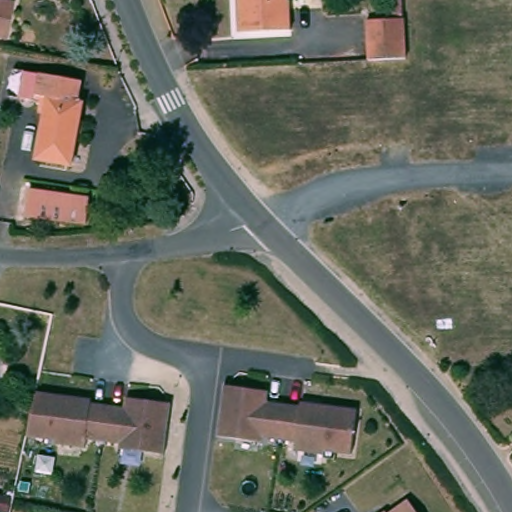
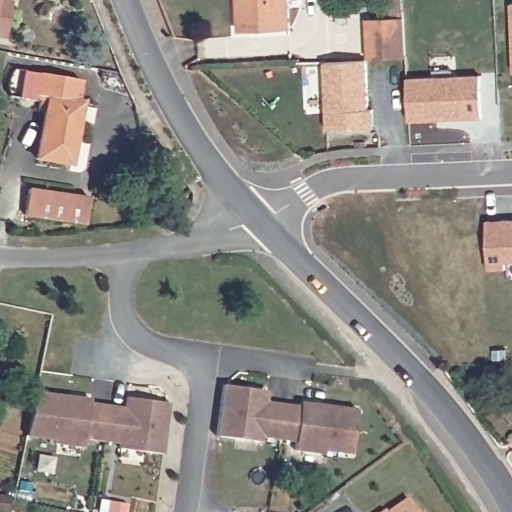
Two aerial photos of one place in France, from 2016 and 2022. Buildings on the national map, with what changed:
unchanged [(238,31),(238,0),(289,0),(290,29),(238,31)]
unchanged [(13,6),(11,15),(7,39),(0,37),(0,3),(13,6)]
new [(512,4),(512,61),(509,4),(512,4)]
unchanged [(401,17),(403,59),(366,61),(364,19),(401,17)]
new [(325,68),(367,66),(369,114),(373,114),(374,132),(329,133),(325,68)]
unchanged [(79,84),(75,104),(81,105),(67,167),(34,160),(44,115),(40,114),(43,97),(36,96),(40,76),(79,84)]
new [(408,122),(406,79),(481,76),(482,119),(408,122)]
unchanged [(88,205),(82,229),(22,217),(27,193),(88,205)]
new [(486,221),(512,220),(512,263),(506,263),(506,271),(488,272),(486,221)]
unchanged [(276,387),(275,392),(274,397),(308,402),(309,398),(330,401),(365,406),(358,451),(331,447),(330,451),(300,446),(302,437),(285,435),(268,433),(267,438),(222,432),(230,381),(255,384),(276,387)]
unchanged [(31,416),(35,403),(38,392),(72,397),(93,400),(92,403),(126,408),(127,403),(128,397),(149,401),(171,403),(164,455),(119,449),(120,444),(103,442),(86,440),(84,448),(54,444),(55,441),(26,437),(31,416)]
unchanged [(409,497),(419,512),(384,512),(409,497)]

